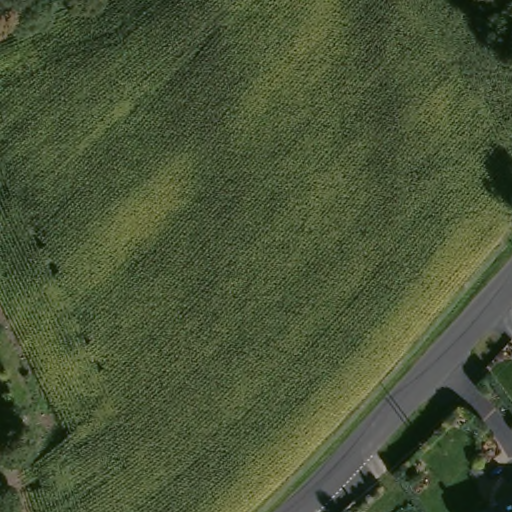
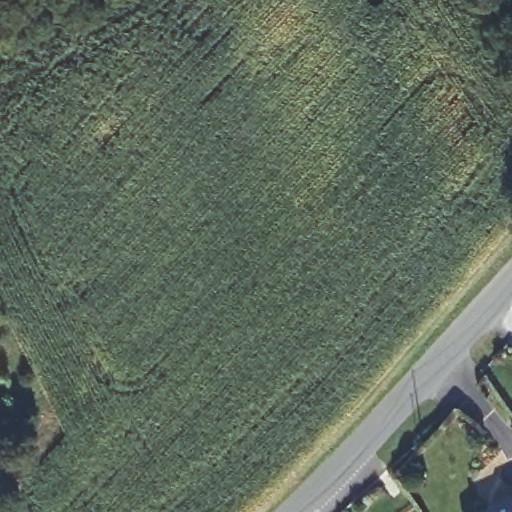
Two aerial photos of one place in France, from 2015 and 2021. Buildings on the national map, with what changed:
unchanged [(488,505),(507,499),(512,500),(512,512),(487,512),(491,511),(488,505)]

